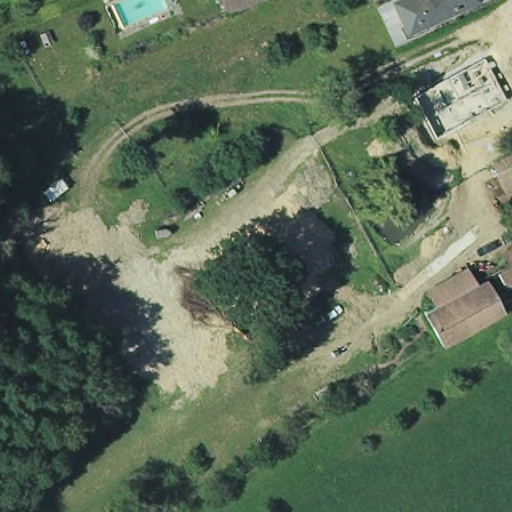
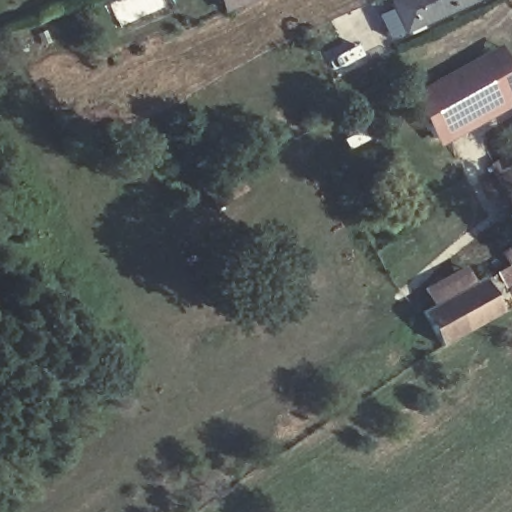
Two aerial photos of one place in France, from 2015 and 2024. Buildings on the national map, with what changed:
unchanged [(218,0),(246,0),(222,10),(220,2),(218,0)]
unchanged [(387,5),(396,0),(477,0),(479,4),(408,38),(387,5)]
new [(410,94),(500,45),(512,69),(512,98),(507,101),(510,107),(439,146),(410,94)]
unchanged [(512,170),(512,189),(504,175),(512,170)]
unchanged [(437,348),(419,316),(432,310),(422,291),(465,265),(476,285),(484,281),(502,317),(437,348)]

